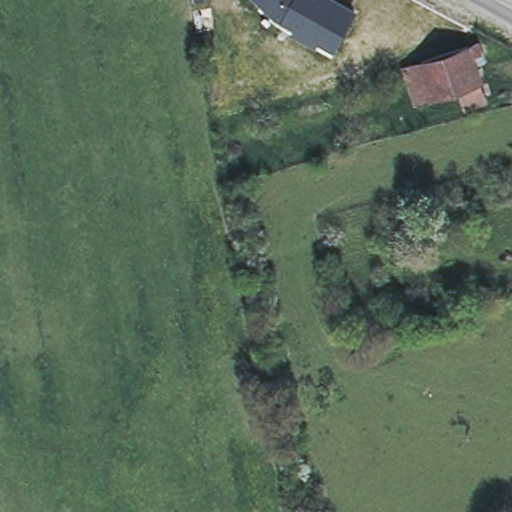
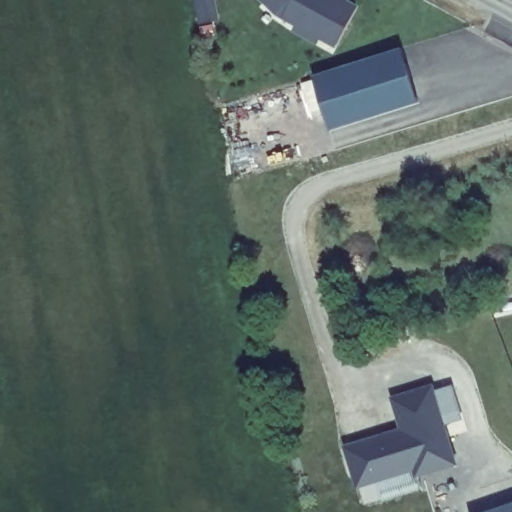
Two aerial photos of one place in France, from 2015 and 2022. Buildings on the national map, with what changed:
unchanged [(338,48),(322,41),(319,46),(292,31),(294,28),(276,16),(258,0),(348,0),(361,7),(338,48)]
demolished [(490,58),(481,61),(487,79),(493,101),(467,108),(461,88),(417,101),(405,60),(483,36),(490,58)]
new [(419,103),(329,131),(313,76),(401,48),(419,103)]
new [(435,390),(453,384),(464,419),(447,424),(459,464),(415,479),(413,472),(355,489),(343,447),(399,430),(389,398),(434,383),(435,390)]

